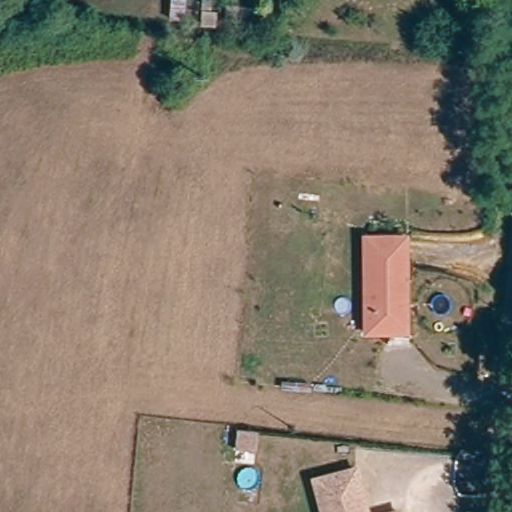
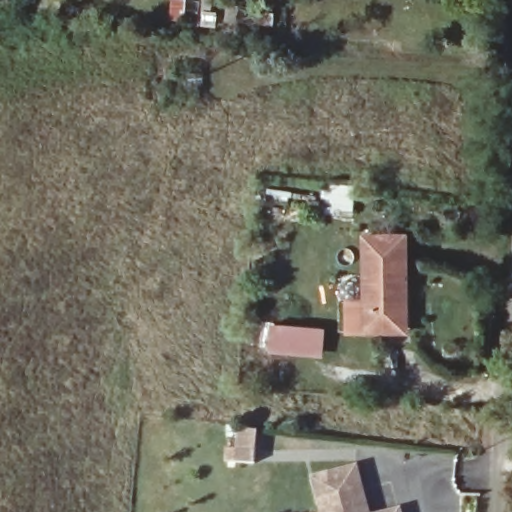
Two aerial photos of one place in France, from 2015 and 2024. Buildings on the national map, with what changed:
unchanged [(237,28),(238,18),(250,19),(248,29),(237,28)]
unchanged [(362,336),(363,233),(409,234),(408,333),(362,336)]
new [(323,358),(268,352),(271,324),(325,329),(323,358)]
unchanged [(258,434),(255,454),(236,452),(239,432),(258,434)]
unchanged [(315,473),(356,463),(366,508),(360,509),(361,512),(323,512),(315,473)]
unchanged [(398,512),(378,512),(398,508),(398,512)]

